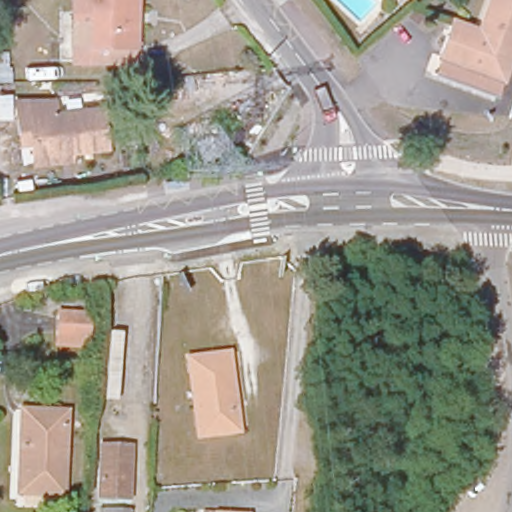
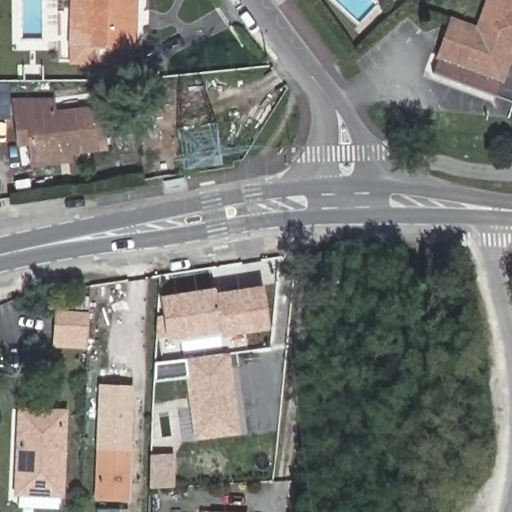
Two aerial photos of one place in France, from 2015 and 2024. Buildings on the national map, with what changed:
unchanged [(118,64),(108,64),(103,64),(89,63),(89,45),(82,46),(82,31),(73,31),(75,0),(138,0),(137,47),(134,47),(134,65),(118,64)]
unchanged [(436,73),(429,70),(437,52),(452,14),(476,22),(485,0),(512,0),(512,44),(500,75),(493,95),(486,92),(436,73)]
demolished [(5,66),(10,66),(10,81),(0,81),(0,51),(8,51),(5,66)]
unchanged [(29,161),(29,154),(28,141),(16,142),(14,117),(12,97),(52,94),(52,107),(100,104),(104,147),(66,150),(66,158),(29,161)]
new [(214,287),(216,293),(263,286),(269,331),(166,346),(156,333),(156,315),(162,315),(159,296),(214,287)]
unchanged [(58,338),(59,331),(60,306),(92,308),(91,325),(91,333),(90,340),(58,338)]
unchanged [(235,432),(195,436),(186,359),(226,355),(235,432)]
new [(100,445),(96,444),(99,385),(134,385),(131,446),(100,445)]
unchanged [(14,496),(19,415),(62,417),(58,499),(14,496)]
unchanged [(131,446),(129,498),(98,497),(100,445),(131,446)]
new [(175,455),(174,488),(149,487),(150,454),(175,455)]
unchanged [(246,512),(203,512),(203,509),(246,512)]
unchanged [(118,510),(118,512),(98,512),(98,510),(118,510)]

